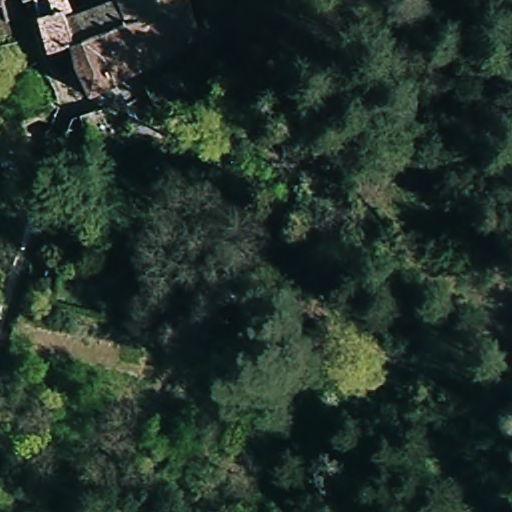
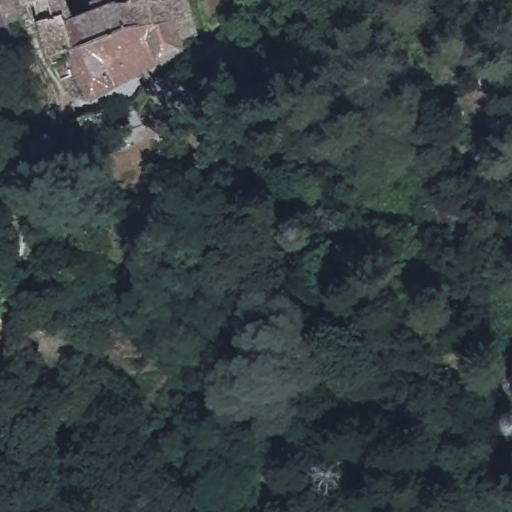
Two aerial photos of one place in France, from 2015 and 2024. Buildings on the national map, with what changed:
unchanged [(0,10),(0,0),(15,0),(16,5),(23,18),(5,24),(0,10)]
unchanged [(186,48),(94,100),(82,75),(75,49),(50,57),(43,32),(40,23),(34,1),(25,3),(23,0),(66,0),(68,7),(71,13),(73,21),(95,12),(91,2),(97,0),(118,0),(118,4),(123,2),(133,1),(141,0),(191,0),(198,33),(183,41),(186,48)]
unchanged [(132,0),(141,0),(133,1),(132,0)]
unchanged [(179,70),(192,95),(161,111),(148,89),(179,70)]
unchanged [(83,130),(76,132),(73,120),(104,110),(113,135),(88,145),(83,130)]

